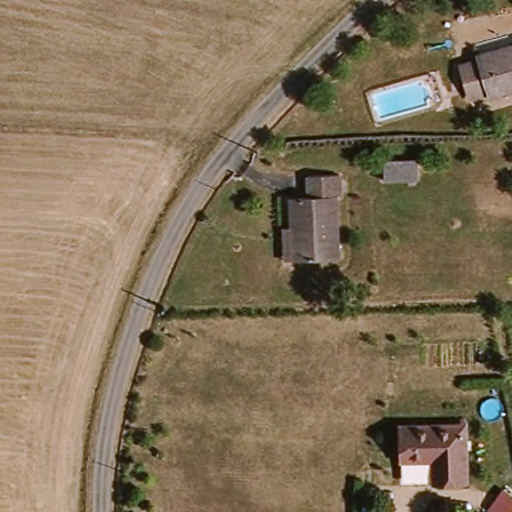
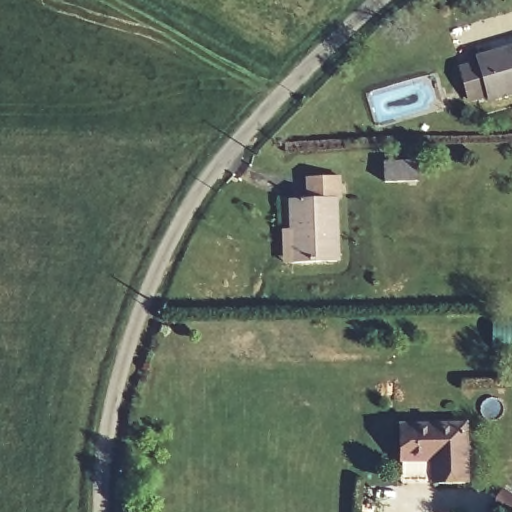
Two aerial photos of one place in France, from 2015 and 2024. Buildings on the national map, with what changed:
unchanged [(475,101),(466,68),(484,64),(482,59),(512,51),(512,97),(495,102),(494,96),(475,101)]
unchanged [(390,182),(390,160),(422,160),(422,182),(390,182)]
unchanged [(296,199),(308,199),(310,178),(339,178),(340,228),(299,229),(296,199)]
unchanged [(299,229),(340,228),(341,259),(300,261),(299,229)]
unchanged [(469,422),(470,482),(432,484),(432,459),(403,460),(402,424),(469,422)]

